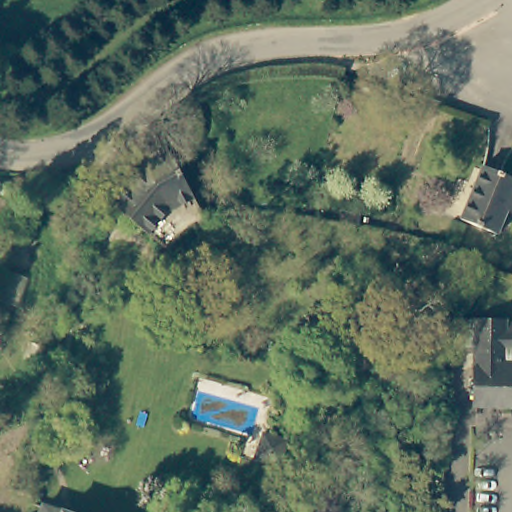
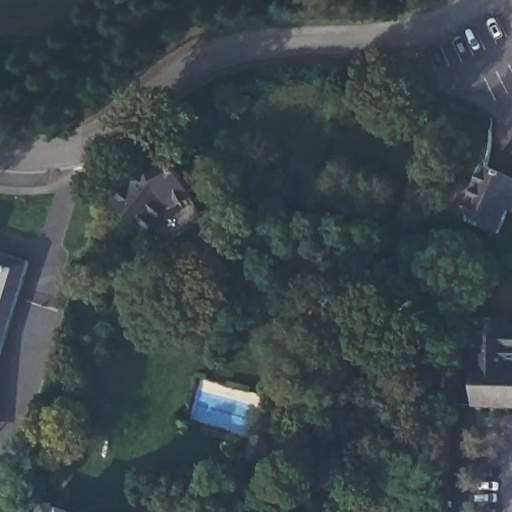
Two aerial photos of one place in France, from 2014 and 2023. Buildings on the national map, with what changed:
unchanged [(165,239),(106,196),(108,194),(142,153),(141,150),(160,137),(197,194),(203,204),(165,239)]
unchanged [(512,182),(512,206),(507,204),(492,237),(456,221),(481,168),(512,182)]
new [(1,357),(0,369),(0,253),(31,262),(1,357)]
unchanged [(481,370),(481,352),(462,351),(463,326),(466,321),(510,323),(510,326),(512,326),(512,352),(510,352),(510,363),(512,364),(512,372),(481,370)]
unchanged [(479,408),(479,405),(480,386),(481,370),(512,372),(512,410),(479,408)]
unchanged [(296,425),(290,449),(265,443),(272,419),(296,425)]
unchanged [(63,512),(46,512),(47,507),(63,512)]

